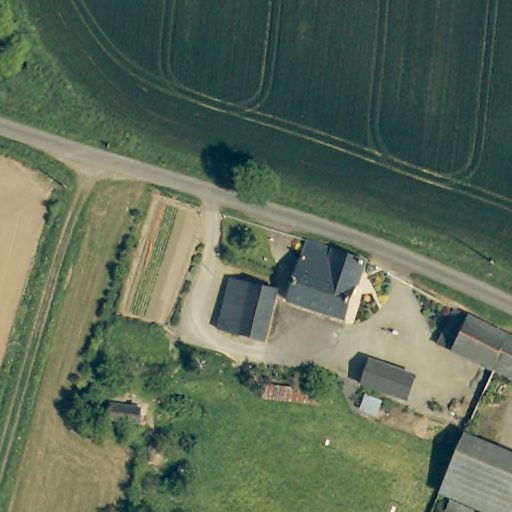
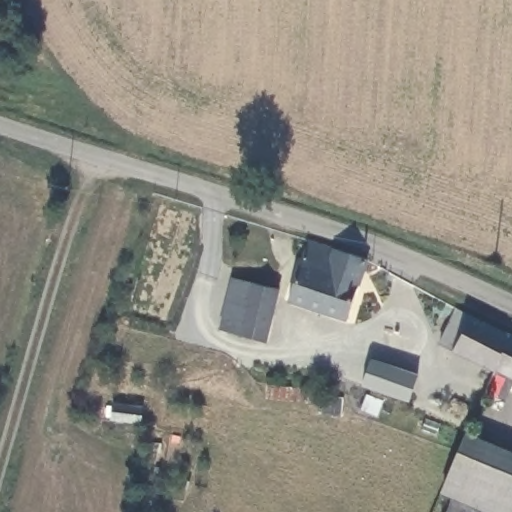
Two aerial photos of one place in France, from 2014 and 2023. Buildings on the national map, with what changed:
unchanged [(307,242),(367,261),(347,322),(288,302),(307,242)]
unchanged [(232,278),(255,285),(240,337),(218,332),(232,278)]
unchanged [(255,285),(280,291),(267,343),(240,337),(255,285)]
unchanged [(510,338),(495,369),(493,373),(438,346),(455,311),(510,338)]
unchanged [(512,377),(495,369),(510,338),(512,339),(512,377)]
unchanged [(512,456),(512,512),(486,512),(443,493),(469,437),(512,456)]
unchanged [(468,512),(445,512),(448,504),(468,512)]

